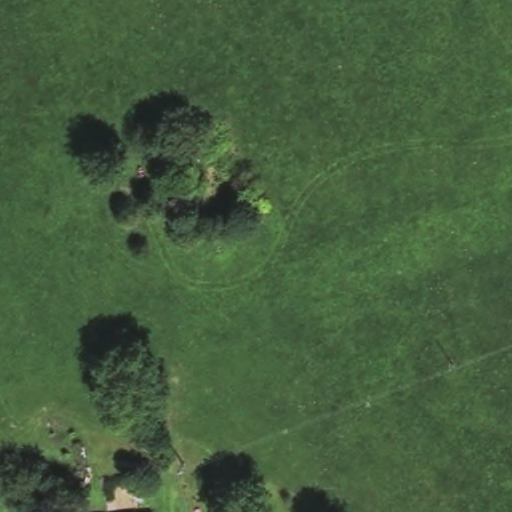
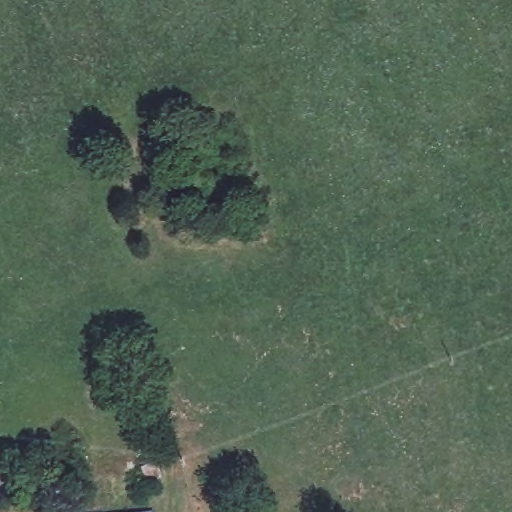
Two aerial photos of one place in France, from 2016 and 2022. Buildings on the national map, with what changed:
unchanged [(151,506),(152,512),(114,512),(151,506)]

